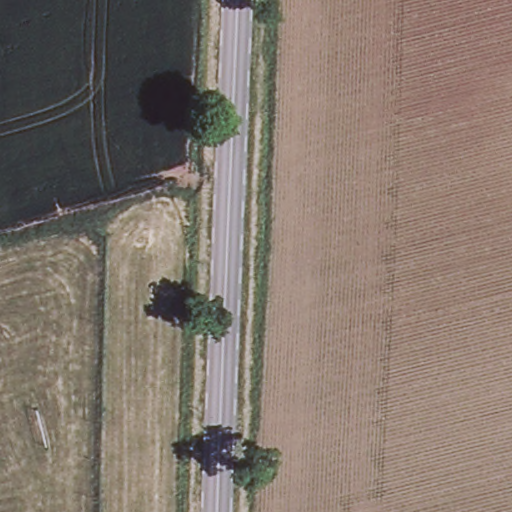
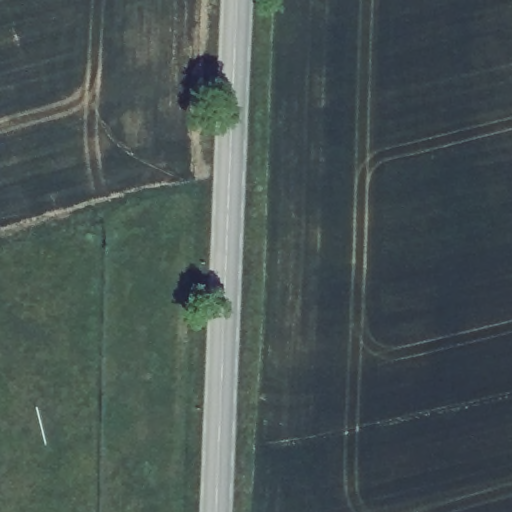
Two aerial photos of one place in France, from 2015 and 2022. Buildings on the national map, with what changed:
[]

